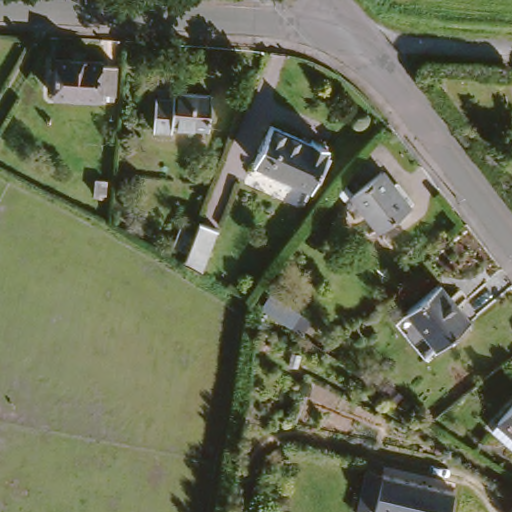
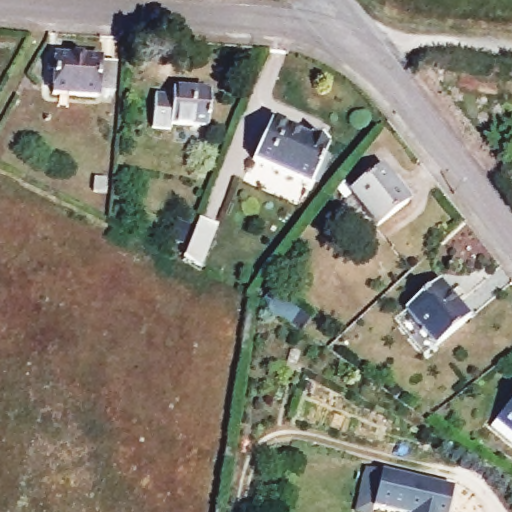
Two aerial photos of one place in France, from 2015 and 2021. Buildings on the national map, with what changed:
unchanged [(102,64),(102,68),(117,69),(116,93),(101,93),(100,100),(54,97),(56,61),(102,64)]
unchanged [(178,101),(178,94),(215,97),(212,130),(178,126),(177,132),(158,130),(160,99),(178,101)]
unchanged [(307,146),(311,141),(324,150),(323,153),(328,156),(311,191),(254,165),(271,129),(307,146)]
unchanged [(406,207),(378,228),(352,195),(380,173),(406,207)]
unchanged [(203,218),(221,227),(201,264),(183,254),(203,218)]
unchanged [(470,320),(438,347),(408,310),(440,284),(470,320)]
unchanged [(512,403),(512,432),(498,419),(512,403)]
unchanged [(445,512),(370,512),(356,512),(365,473),(377,476),(449,490),(445,512)]

